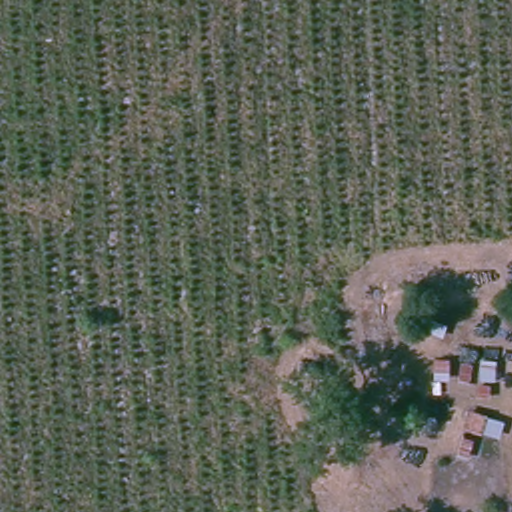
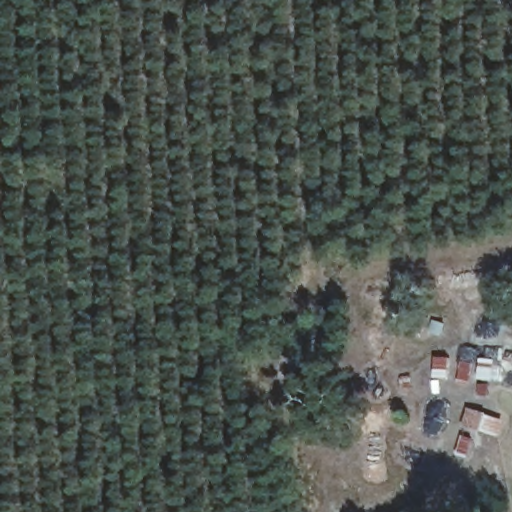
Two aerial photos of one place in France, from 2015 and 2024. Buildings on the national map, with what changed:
unchanged [(488,362),(470,410),(438,398),(455,348),(488,362)]

